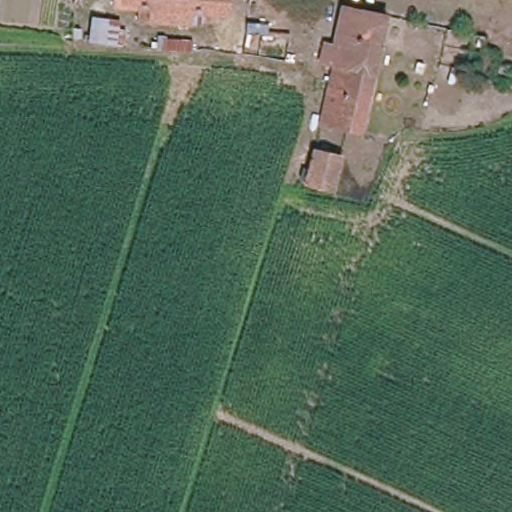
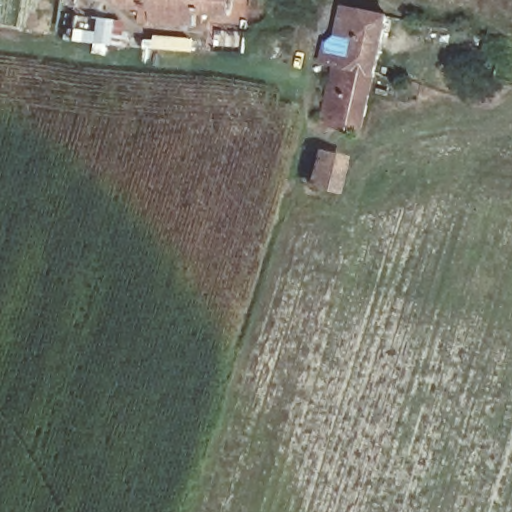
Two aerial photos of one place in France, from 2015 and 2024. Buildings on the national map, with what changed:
unchanged [(112,0),(226,0),(223,16),(193,13),(190,32),(142,24),(143,6),(112,2),(112,0)]
unchanged [(384,21),(366,136),(356,136),(327,131),(337,67),(315,63),(319,41),(343,43),(345,17),(384,21)]
unchanged [(343,186),(330,187),(284,182),(288,151),(336,155),(347,156),(343,186)]

